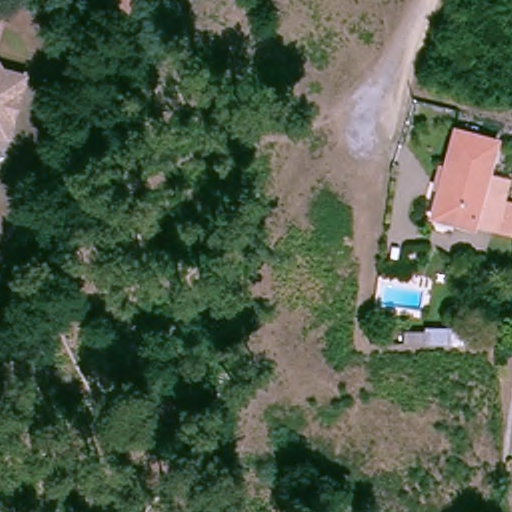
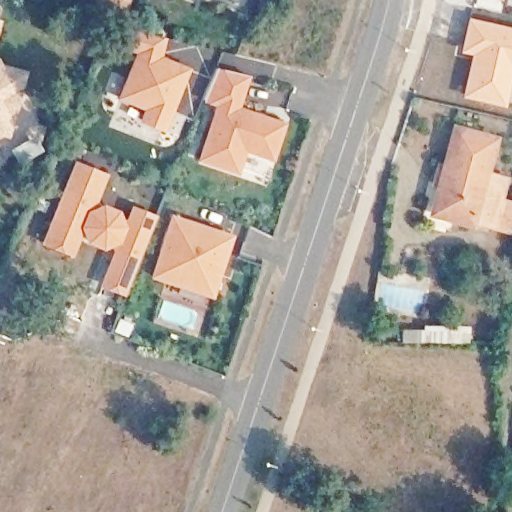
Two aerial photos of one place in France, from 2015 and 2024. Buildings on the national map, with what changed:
unchanged [(122,12),(95,4),(96,0),(125,0),(122,12)]
new [(229,4),(218,0),(230,0),(229,4)]
new [(443,0),(470,0),(468,7),(442,1),(443,0)]
new [(511,0),(512,0),(512,3),(510,2),(511,0)]
new [(512,27),(512,85),(506,108),(461,96),(470,56),(458,52),(467,16),(512,27)]
unchanged [(0,26),(0,23),(1,23),(0,26)]
new [(165,133),(140,122),(143,110),(118,100),(136,54),(129,52),(135,31),(166,37),(161,58),(190,69),(165,133)]
unchanged [(1,68),(2,72),(27,81),(20,100),(11,95),(2,116),(7,119),(2,135),(0,134),(0,68),(1,68)]
new [(245,154),(238,176),(197,161),(215,107),(204,103),(217,70),(247,77),(240,107),(286,124),(272,163),(245,154)]
unchanged [(478,213),(476,221),(457,216),(459,211),(437,204),(462,122),(502,135),(485,189),(506,195),(499,220),(478,213)]
new [(79,159),(107,171),(100,187),(98,187),(94,198),(119,208),(124,218),(131,215),(136,204),(159,213),(128,289),(105,280),(119,244),(116,237),(106,242),(92,236),(87,225),(82,226),(74,249),(47,238),(79,159)]
new [(152,279),(172,216),(234,236),(213,300),(152,279)]
unchanged [(512,447),(512,457),(511,456),(512,447)]

